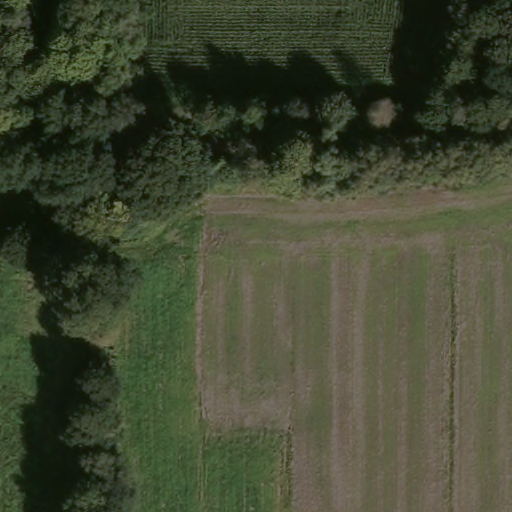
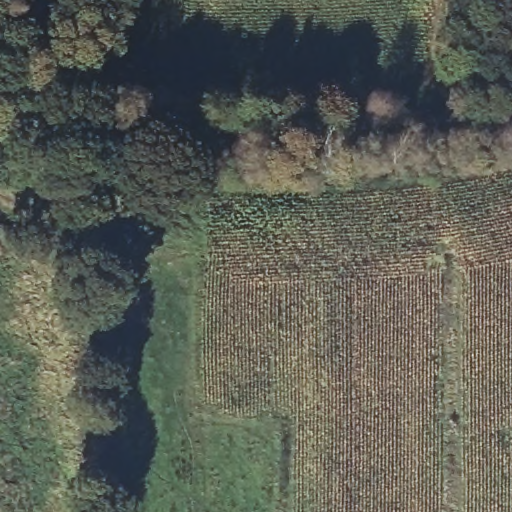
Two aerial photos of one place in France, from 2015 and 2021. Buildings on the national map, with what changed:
unchanged [(2,39),(0,59),(0,38),(2,39)]

